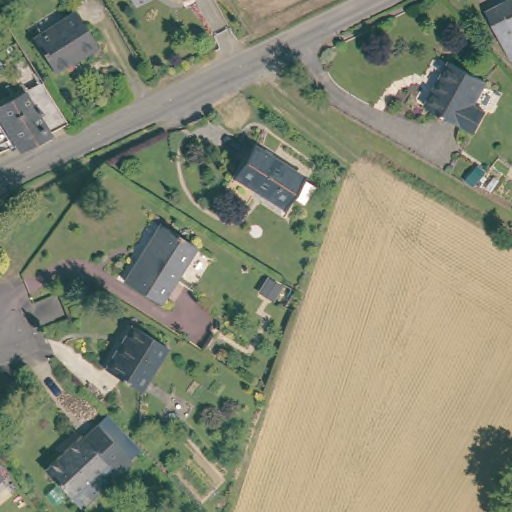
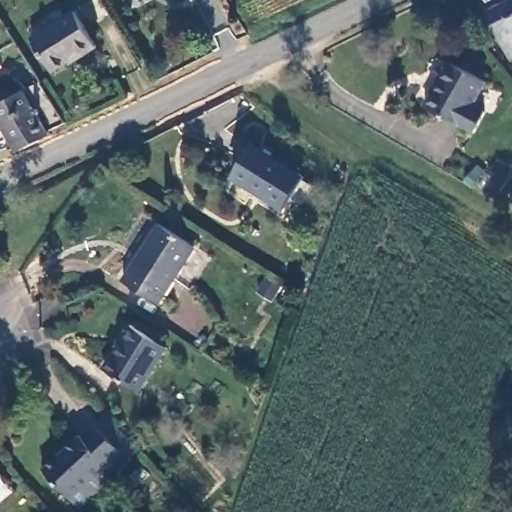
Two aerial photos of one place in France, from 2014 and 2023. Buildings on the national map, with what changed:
unchanged [(503,51),(485,4),(496,0),(512,0),(512,49),(503,51)]
unchanged [(73,12),(95,50),(68,66),(66,61),(51,73),(30,40),(73,12)]
unchanged [(482,130),(469,121),(467,125),(432,105),(457,60),(493,77),(480,103),(495,110),(482,130)]
unchanged [(46,147),(11,161),(0,139),(0,110),(37,90),(60,130),(43,140),(46,147)]
unchanged [(307,179),(290,211),(241,186),(257,151),(307,179)]
unchanged [(201,249),(165,302),(129,281),(165,225),(201,249)]
unchanged [(140,393),(107,372),(136,328),(170,348),(140,393)]
unchanged [(48,475),(82,441),(85,442),(100,430),(112,419),(142,450),(129,462),(131,465),(118,477),(84,512),(82,512),(74,505),(48,475)]
unchanged [(0,494),(0,469),(11,485),(0,494)]

